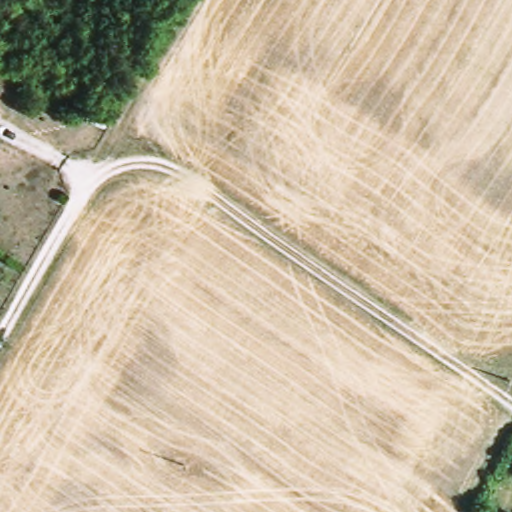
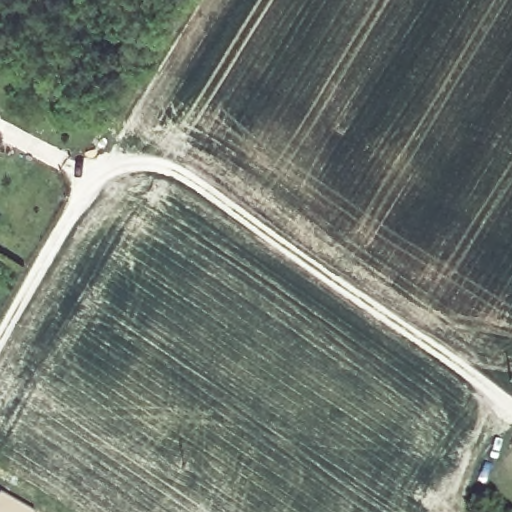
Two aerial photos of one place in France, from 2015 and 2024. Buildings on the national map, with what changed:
new [(30,512),(0,512),(0,495),(0,494),(30,512)]

